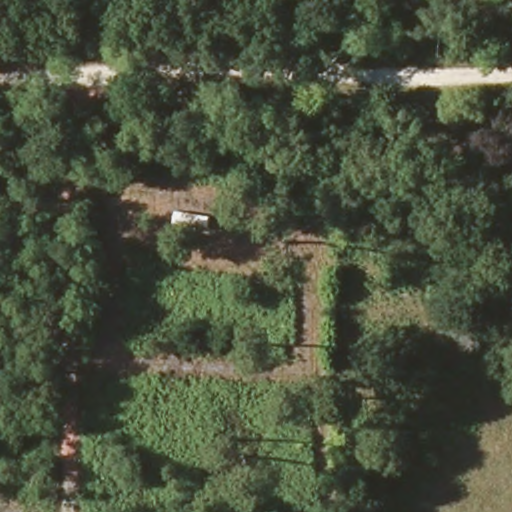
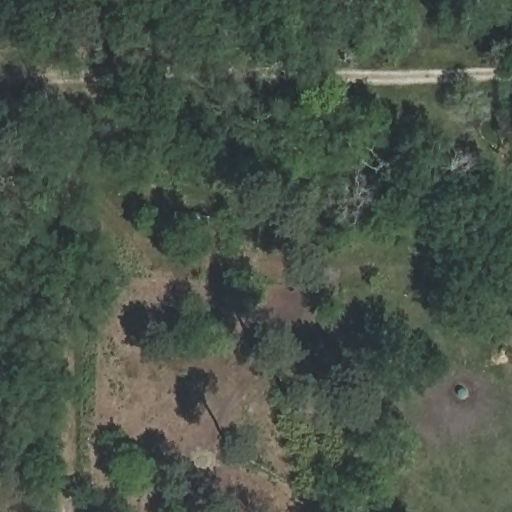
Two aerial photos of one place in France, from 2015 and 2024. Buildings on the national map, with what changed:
[]

